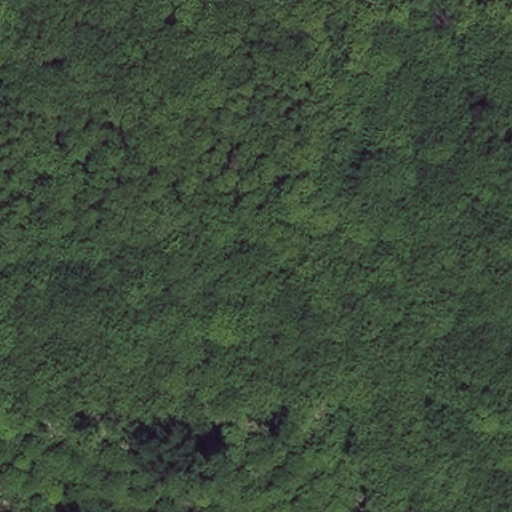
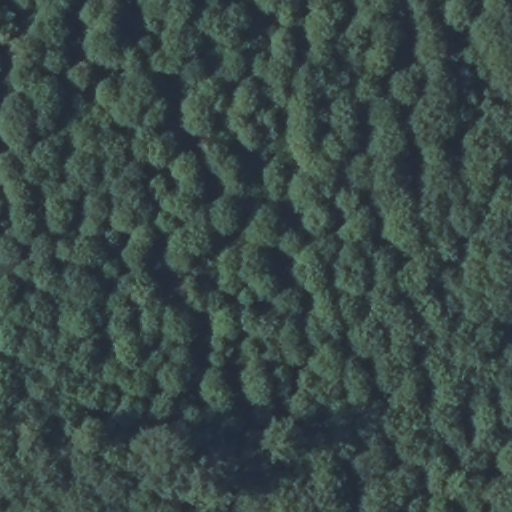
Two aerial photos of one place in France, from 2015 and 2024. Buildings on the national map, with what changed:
[]

